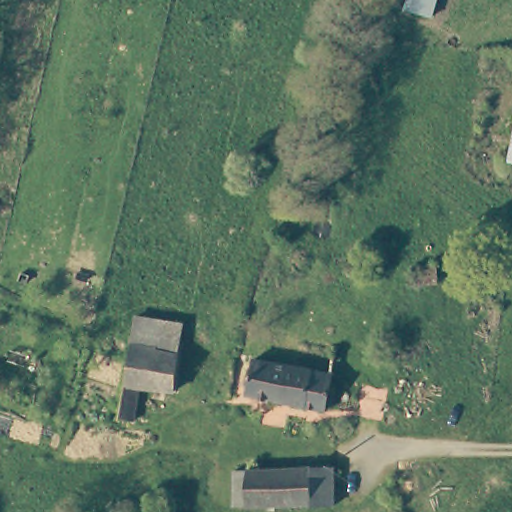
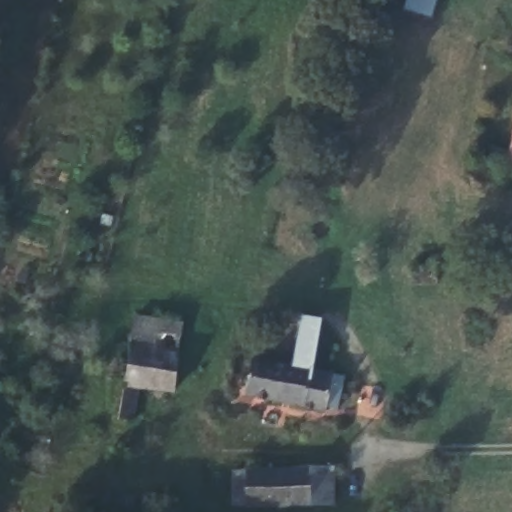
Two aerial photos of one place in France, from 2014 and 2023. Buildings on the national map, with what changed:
new [(432,18),(403,9),(406,0),(437,0),(432,18)]
unchanged [(512,136),(512,162),(507,161),(512,136)]
unchanged [(440,286),(419,285),(420,269),(441,268),(440,286)]
new [(292,367),(300,315),(321,319),(311,371),(292,367)]
unchanged [(140,316),(185,324),(180,353),(135,344),(140,316)]
unchanged [(174,390),(141,385),(135,418),(122,416),(127,383),(135,344),(180,353),(174,390)]
unchanged [(332,376),(325,412),(249,396),(256,359),(332,376)]
unchanged [(338,508),(240,509),(239,473),(337,471),(338,508)]

